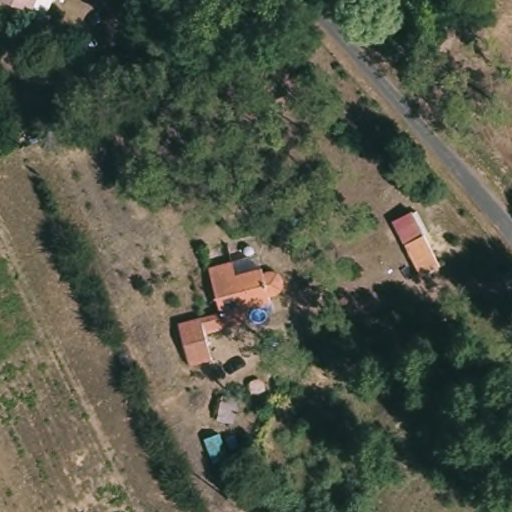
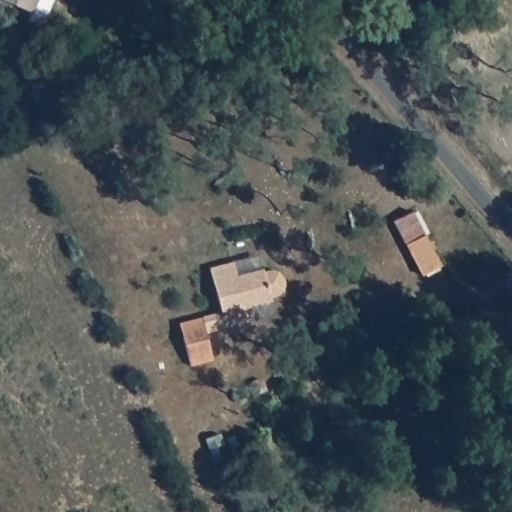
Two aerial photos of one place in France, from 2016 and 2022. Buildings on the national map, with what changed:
unchanged [(42,32),(40,31),(32,28),(24,24),(28,14),(0,0),(57,0),(42,32)]
unchanged [(425,280),(422,274),(403,247),(391,227),(408,217),(421,240),(443,270),(425,280)]
unchanged [(251,255),(257,267),(270,266),(277,275),(275,283),(271,293),(241,307),(248,323),(208,341),(220,370),(196,382),(175,338),(215,321),(195,277),(205,273),(249,257),(251,255)]
unchanged [(250,402),(257,397),(264,396),(272,405),(250,415),(250,402)]

